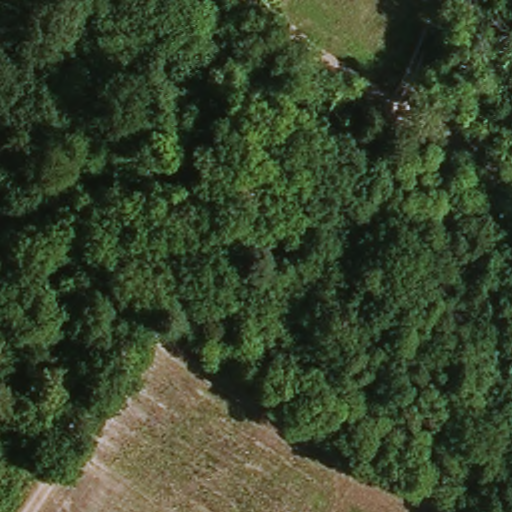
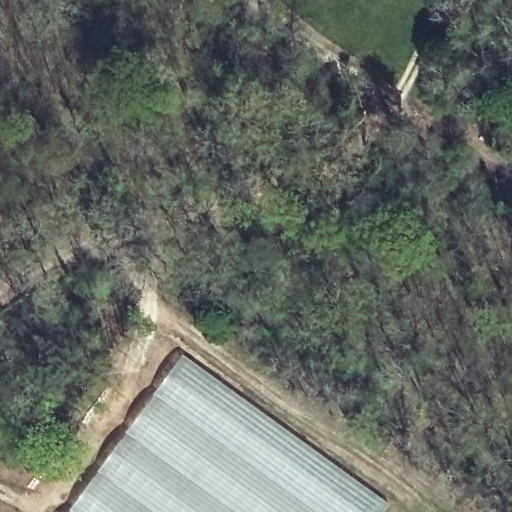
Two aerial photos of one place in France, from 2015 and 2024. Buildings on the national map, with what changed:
new [(178,348),(390,503),(383,512),(65,512),(178,348)]
demolished [(142,363),(315,477),(290,512),(161,512),(80,459),(142,363)]

